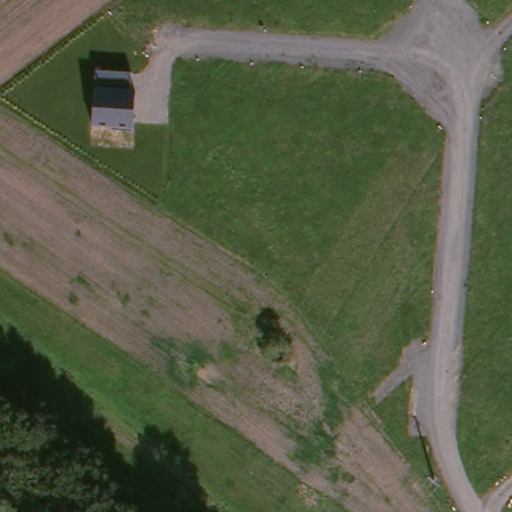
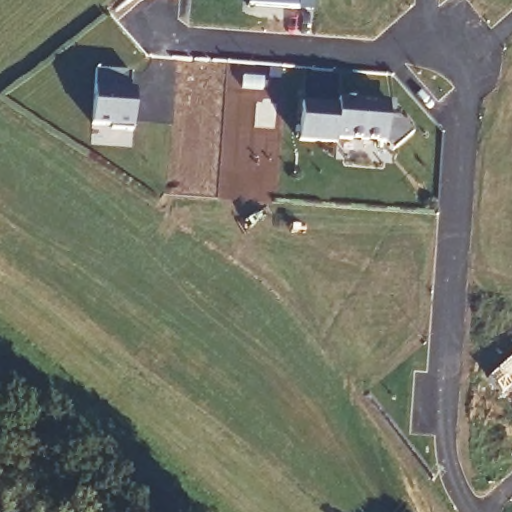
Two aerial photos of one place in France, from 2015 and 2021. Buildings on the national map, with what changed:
unchanged [(249,0),(315,0),(315,10),(249,5),(249,0)]
unchanged [(92,124),(94,86),(95,70),(131,74),(130,90),(135,90),(132,127),(92,124)]
new [(303,103),(339,105),(340,99),(377,102),(377,101),(390,102),(389,117),(401,118),(414,133),(393,151),(385,142),(338,139),(338,143),(300,140),(303,103)]

